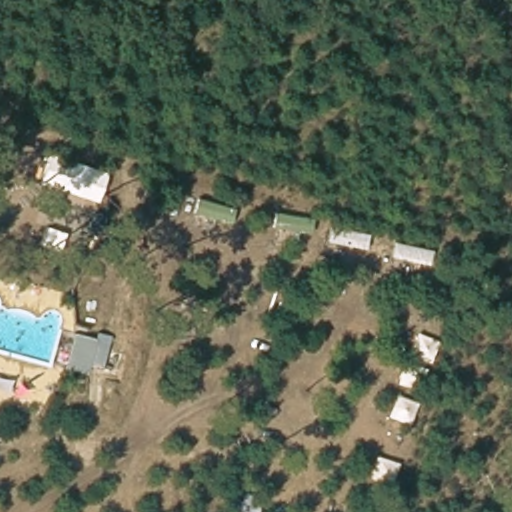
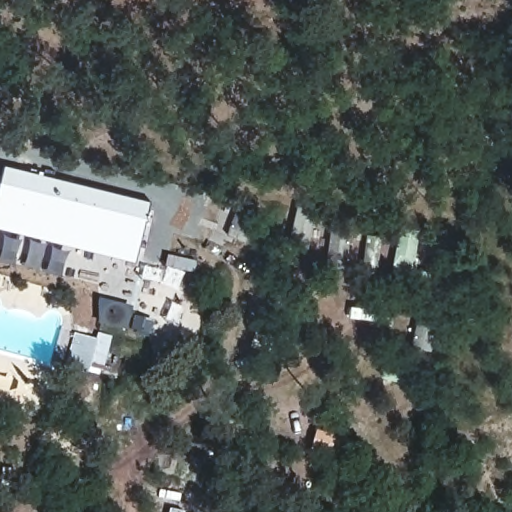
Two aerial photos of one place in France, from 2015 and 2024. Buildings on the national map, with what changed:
demolished [(112,177),(101,207),(40,187),(51,153),(112,177)]
new [(153,197),(140,257),(0,226),(0,195),(6,167),(153,197)]
new [(102,312),(98,311),(100,301),(134,310),(132,317),(147,321),(142,336),(99,324),(102,312)]
unchanged [(88,379),(56,368),(67,332),(98,340),(88,379)]

